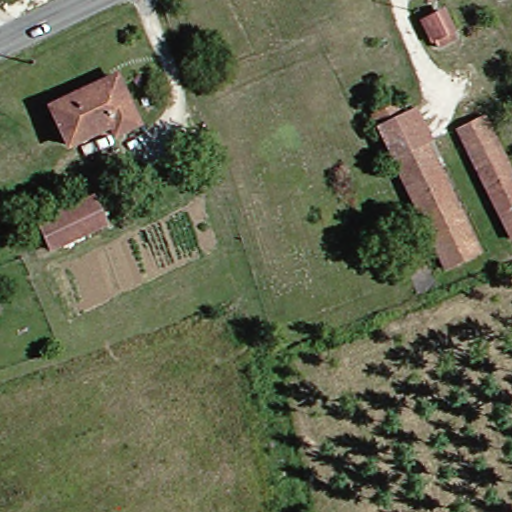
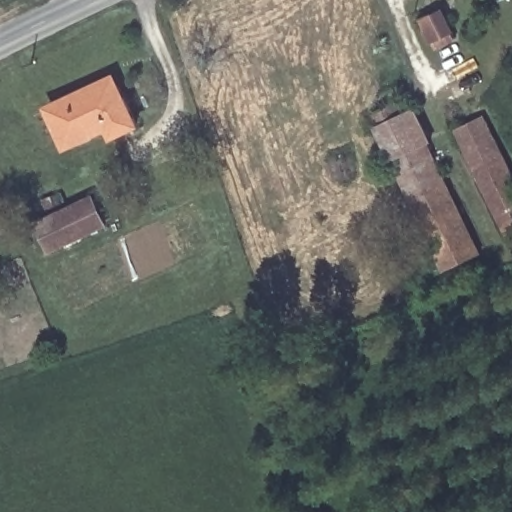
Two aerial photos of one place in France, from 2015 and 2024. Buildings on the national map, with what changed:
unchanged [(435,48),(425,28),(443,17),(454,38),(435,48)]
unchanged [(108,137),(102,127),(57,146),(42,110),(115,78),(134,124),(108,137)]
unchanged [(455,133),(439,105),(456,95),(471,122),(481,120),(512,169),(512,236),(511,237),(451,136),(455,133)]
unchanged [(390,177),(381,182),(361,150),(370,145),(365,134),(403,113),(478,241),(442,262),(390,177)]
unchanged [(87,198),(100,227),(45,252),(32,224),(87,198)]

